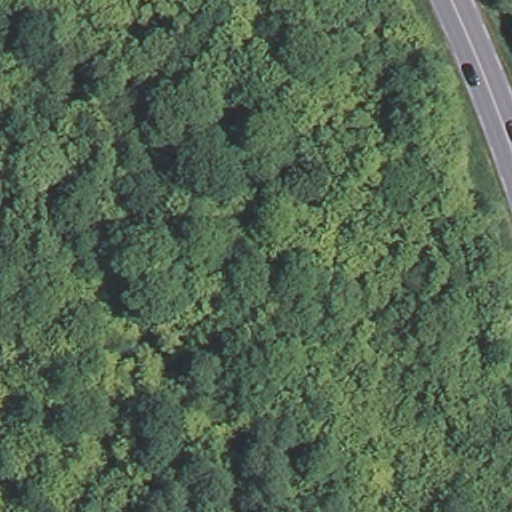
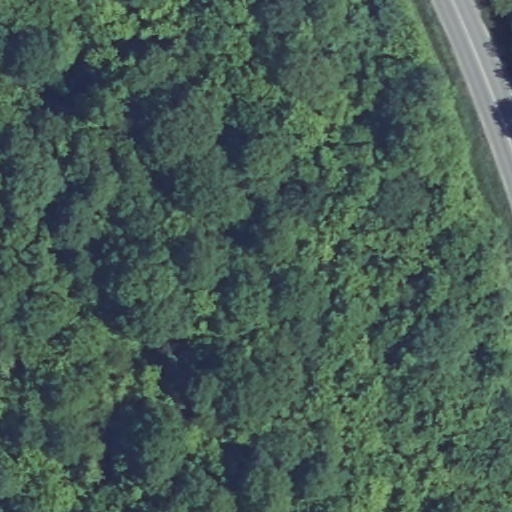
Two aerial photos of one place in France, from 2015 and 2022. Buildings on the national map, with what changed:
[]

